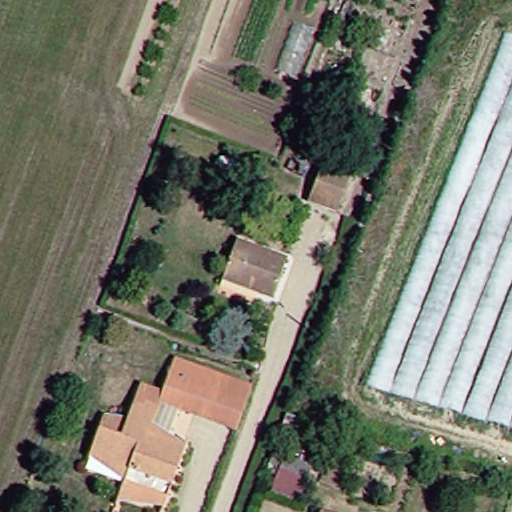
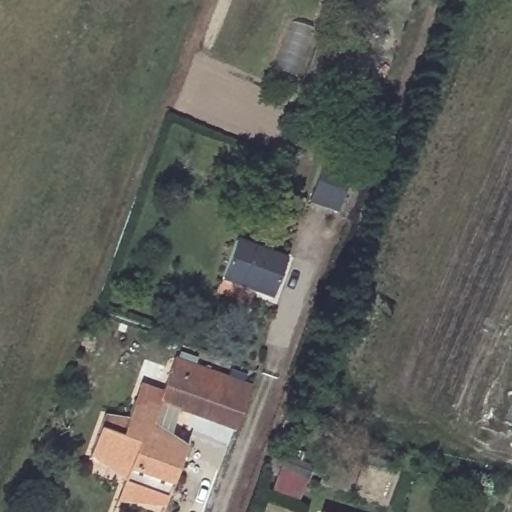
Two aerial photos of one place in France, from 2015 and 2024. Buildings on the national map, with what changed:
demolished [(512,32),(512,432),(364,384),(503,29),(512,32)]
unchanged [(351,177),(338,214),(310,204),(322,168),(351,177)]
unchanged [(275,256),(262,294),(210,276),(225,238),(275,256)]
unchanged [(207,419),(214,389),(161,369),(166,356),(244,386),(230,427),(207,419)]
unchanged [(151,399),(161,369),(214,389),(207,419),(155,400),(151,399)]
unchanged [(103,383),(151,399),(155,400),(151,412),(121,402),(118,419),(95,414),(103,383)]
unchanged [(81,456),(95,414),(118,419),(121,402),(151,412),(144,432),(177,445),(156,506),(116,491),(74,476),(81,456)]
unchanged [(310,462),(297,502),(262,490),(274,452),(310,462)]

